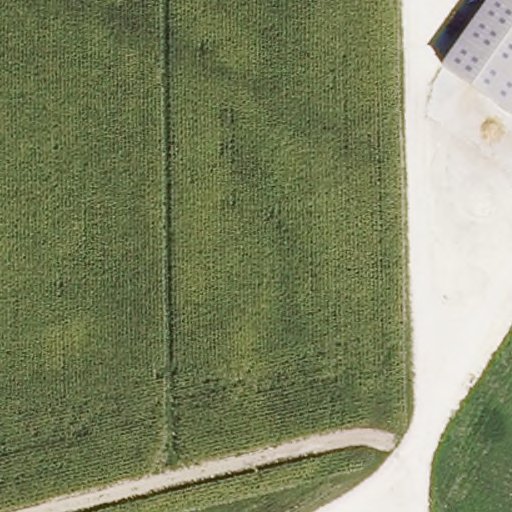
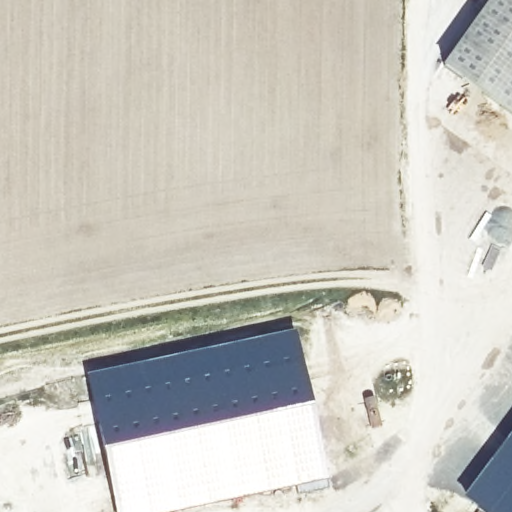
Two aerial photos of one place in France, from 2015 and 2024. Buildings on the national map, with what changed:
unchanged [(491,0),(512,0),(512,114),(442,64),(491,0)]
new [(297,334),(325,482),(159,512),(117,512),(92,373),(297,334)]
new [(512,512),(484,512),(462,495),(512,428),(512,512)]

